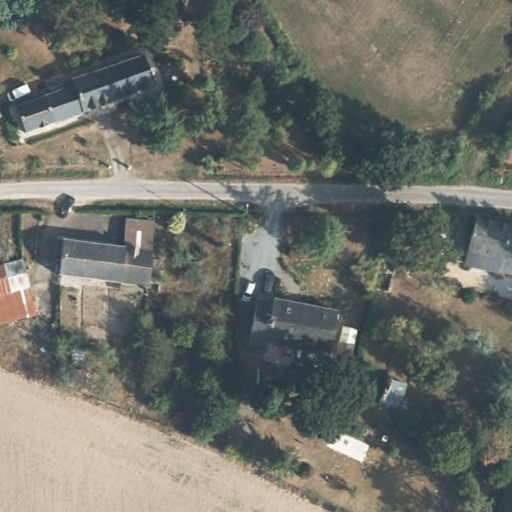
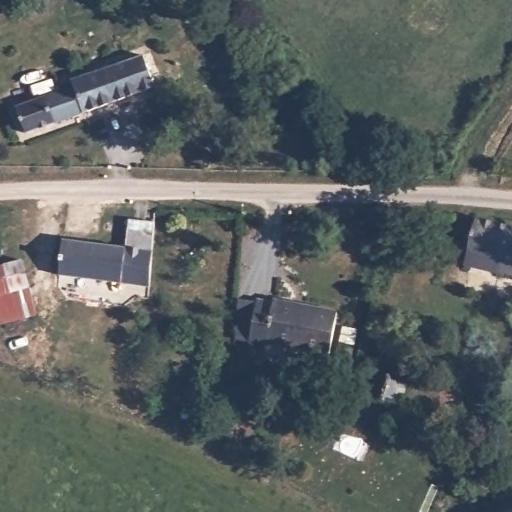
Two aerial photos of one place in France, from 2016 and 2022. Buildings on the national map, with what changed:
unchanged [(4,103),(130,51),(144,83),(17,134),(4,103)]
unchanged [(512,226),(512,260),(457,243),(470,212),(512,226)]
unchanged [(155,220),(148,282),(134,280),(59,272),(64,238),(124,244),(126,217),(129,218),(155,220)]
unchanged [(33,277),(0,288),(0,260),(27,253),(33,277)]
unchanged [(510,270),(512,264),(512,271),(510,270)]
unchanged [(39,300),(40,303),(0,317),(0,288),(33,277),(39,300)]
unchanged [(273,300),(274,295),(339,306),(332,346),(271,336),(270,345),(250,341),(258,299),(273,300)]

